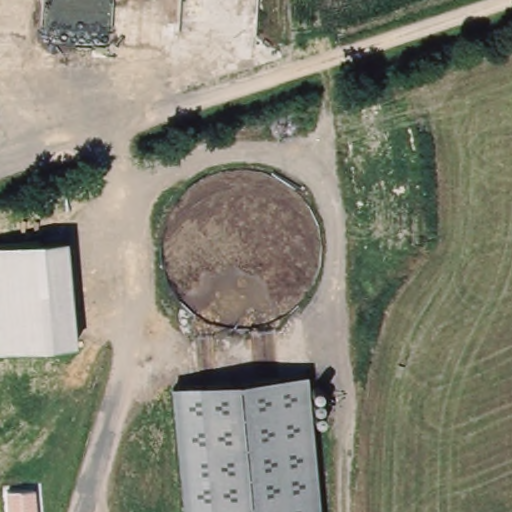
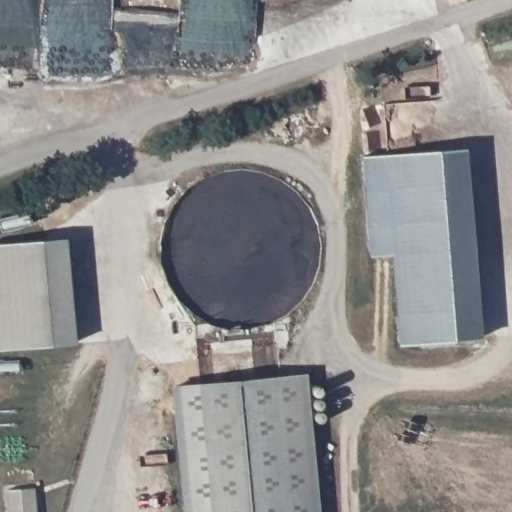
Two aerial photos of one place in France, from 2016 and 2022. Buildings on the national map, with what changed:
new [(467,147),(483,338),(401,345),(393,253),(370,256),(362,156),(467,147)]
unchanged [(68,241),(76,344),(0,352),(0,244),(68,241)]
unchanged [(213,512),(199,381),(312,370),(324,512),(213,512)]
unchanged [(199,381),(213,512),(185,512),(171,383),(199,381)]
unchanged [(35,489),(37,512),(9,512),(8,490),(35,489)]

